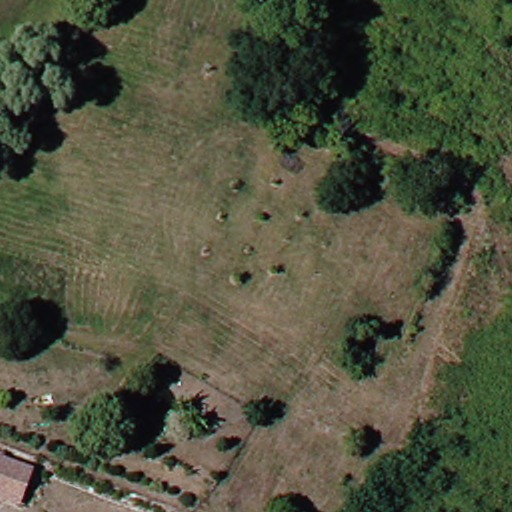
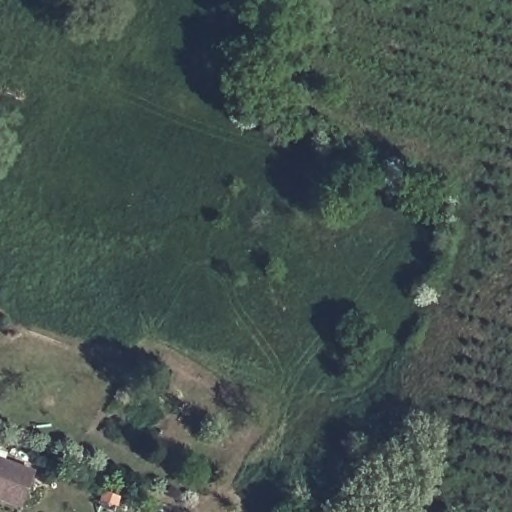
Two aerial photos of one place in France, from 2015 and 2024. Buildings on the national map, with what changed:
unchanged [(0,455),(11,459),(0,490),(0,455)]
unchanged [(27,503),(0,493),(0,490),(11,459),(39,470),(27,503)]

